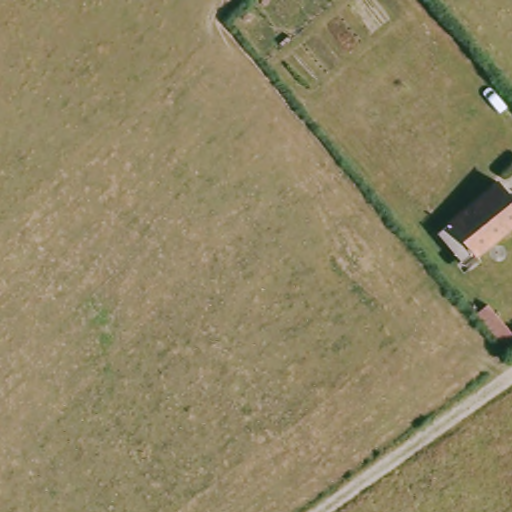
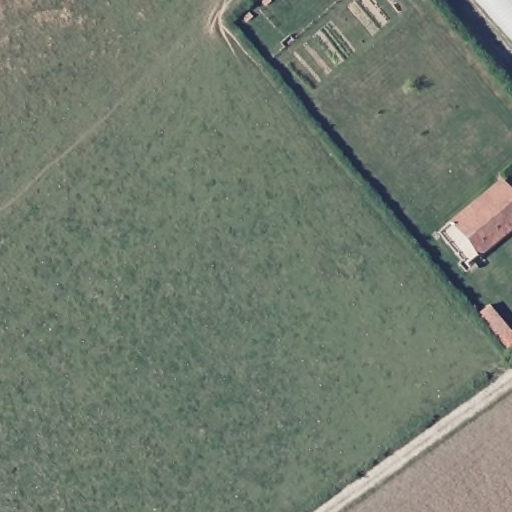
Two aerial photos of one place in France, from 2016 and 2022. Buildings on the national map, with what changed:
new [(475,0),(512,0),(512,40),(475,0)]
unchanged [(498,236),(505,241),(478,266),(450,235),(494,190),(512,208),(512,223),(498,236)]

